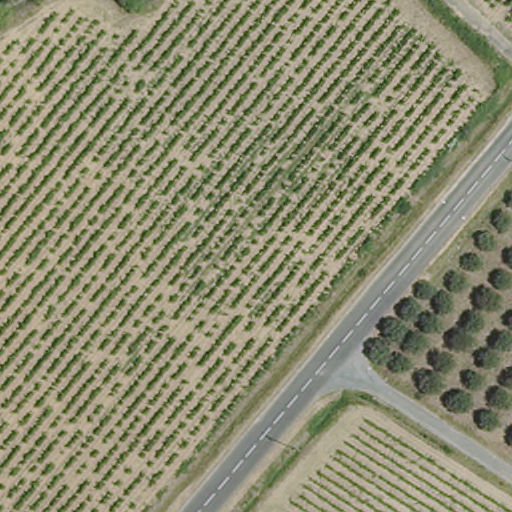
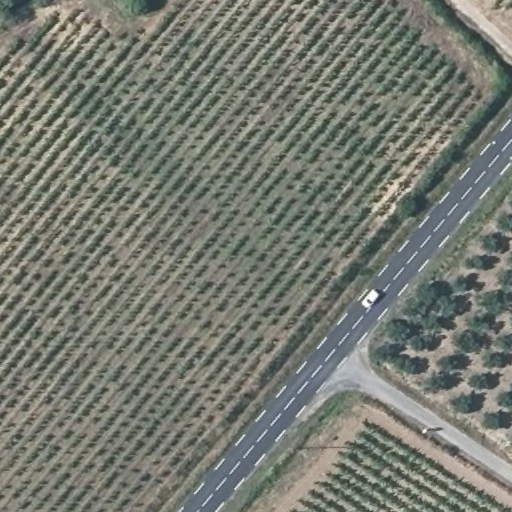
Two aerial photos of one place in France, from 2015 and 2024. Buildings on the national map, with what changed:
[]

